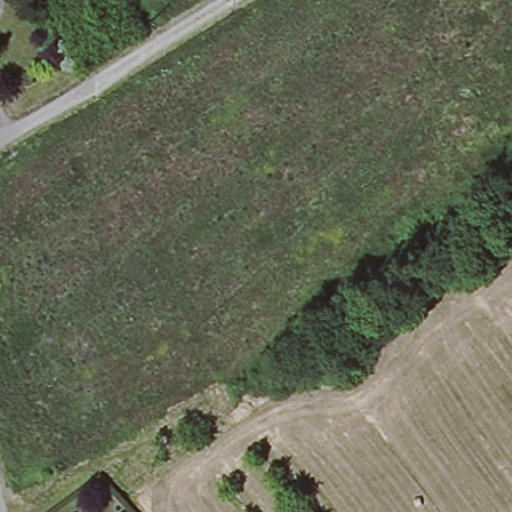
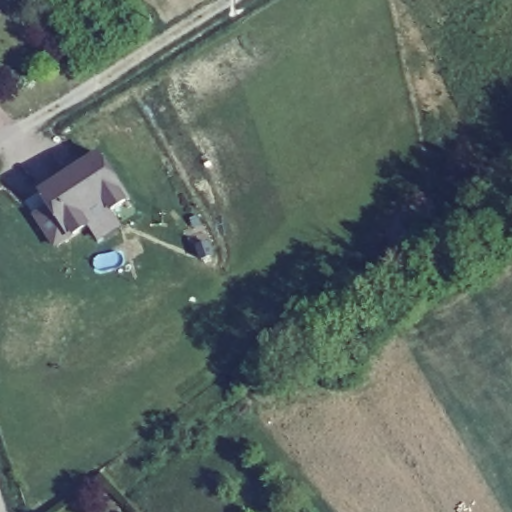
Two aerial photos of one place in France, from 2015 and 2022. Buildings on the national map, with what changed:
new [(130,201),(114,213),(122,227),(98,242),(88,230),(70,242),(54,250),(32,215),(45,207),(36,194),(97,152),(130,201)]

